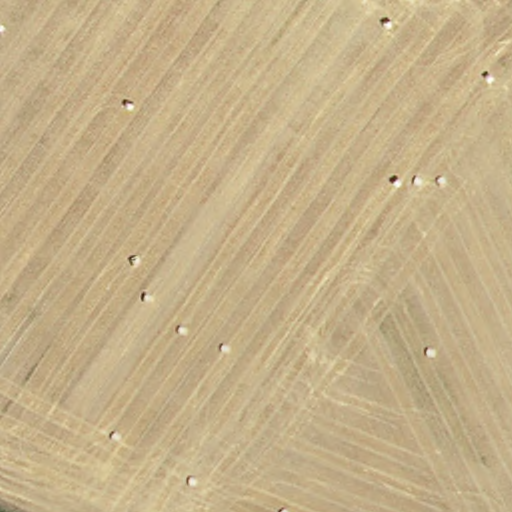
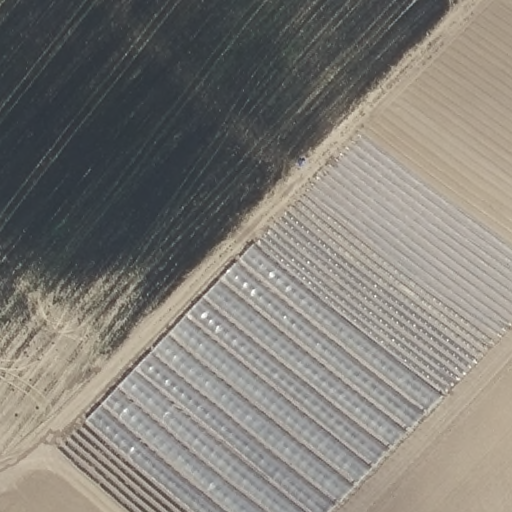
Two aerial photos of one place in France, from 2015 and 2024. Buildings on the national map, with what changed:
new [(331,512),(196,512),(88,420),(254,242),(442,396),(331,512)]

